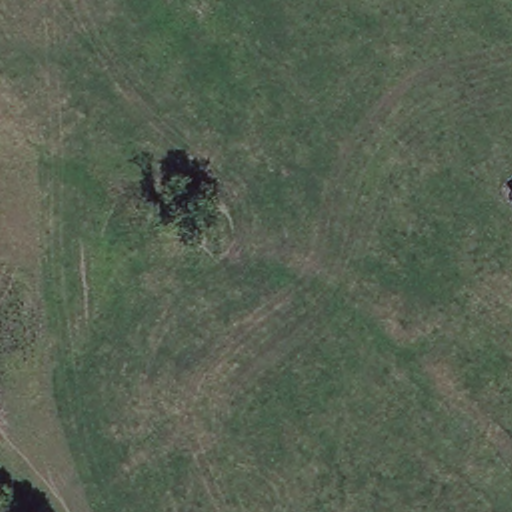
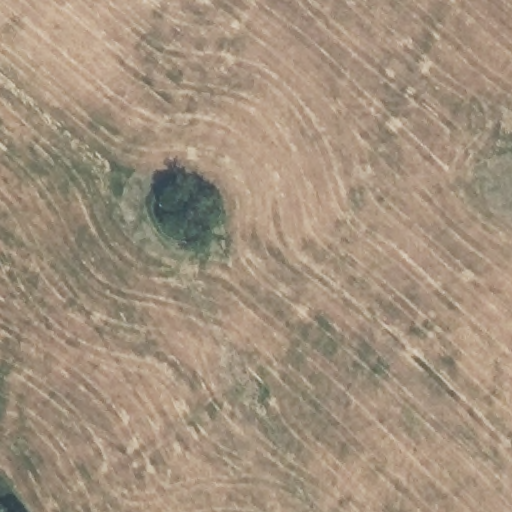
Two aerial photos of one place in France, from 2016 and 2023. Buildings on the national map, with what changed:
unchanged [(512,183),(507,179),(512,173),(512,183)]

